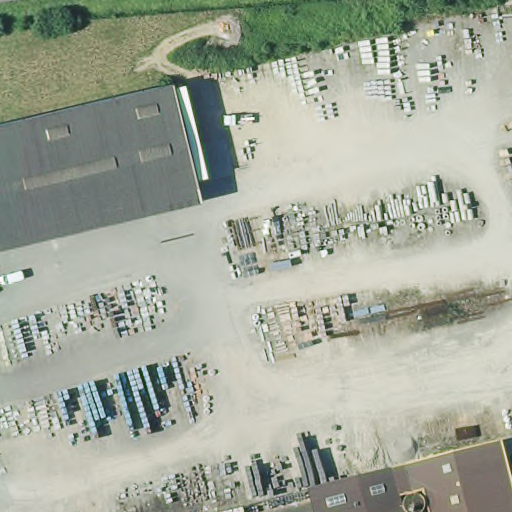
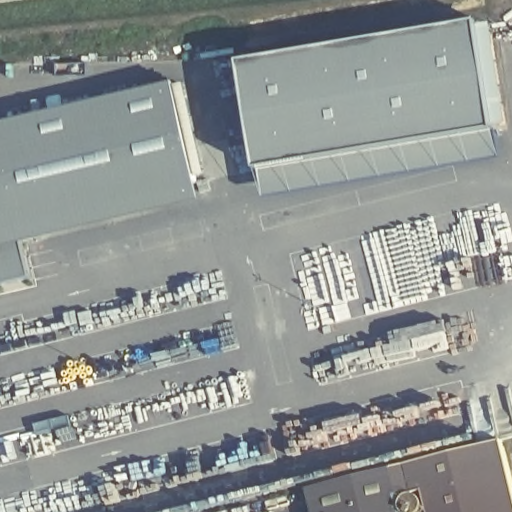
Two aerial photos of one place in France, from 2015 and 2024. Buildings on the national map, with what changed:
new [(494,26),(512,127),(512,136),(273,178),(255,68),(494,26)]
unchanged [(183,109),(201,179),(206,207),(27,247),(35,281),(0,287),(0,127),(176,83),(183,109)]
unchanged [(211,101),(228,172),(201,179),(183,109),(211,101)]
unchanged [(393,471),(466,453),(502,444),(512,481),(512,512),(403,512),(393,471)]
unchanged [(393,471),(403,512),(315,512),(310,492),(393,471)]

